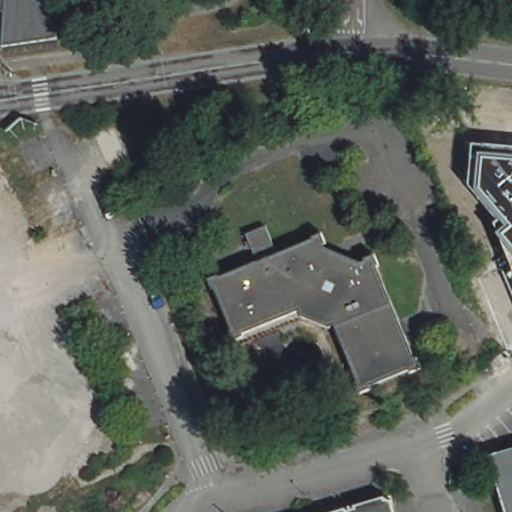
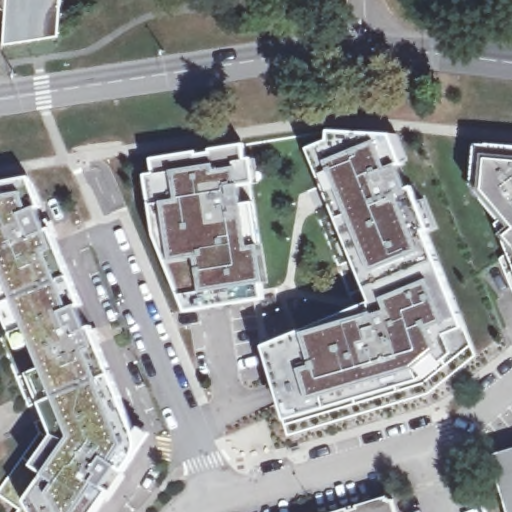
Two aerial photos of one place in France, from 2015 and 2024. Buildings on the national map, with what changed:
unchanged [(60,38),(5,46),(7,14),(0,13),(0,0),(62,0),(60,38)]
new [(264,347),(370,302),(307,149),(329,141),(330,131),(390,135),(401,163),(397,165),(407,190),(412,188),(427,229),(422,231),(463,327),(445,334),(452,354),(419,381),(285,419),(264,347)]
new [(156,235),(146,176),(154,174),(152,161),(196,153),(197,156),(212,154),(212,150),(243,145),(245,161),(251,160),(254,183),(239,185),(242,205),(253,203),(260,245),(265,281),(262,282),(263,299),(187,311),(156,235)]
new [(501,222),(472,189),(475,145),(512,147),(512,260),(509,252),(497,224),(501,222)]
demolished [(0,254),(0,160),(36,239),(0,254)]
new [(41,207),(37,209),(42,221),(47,219),(50,228),(81,305),(77,307),(86,327),(90,326),(134,433),(139,426),(150,433),(135,455),(123,471),(127,476),(108,504),(102,501),(94,512),(32,512),(26,500),(43,474),(32,465),(53,434),(29,374),(41,367),(31,342),(18,349),(0,307),(0,270),(1,269),(0,268),(0,181),(29,176),(41,207)]
demolished [(218,288),(226,285),(224,280),(261,264),(249,235),(269,227),(281,255),(317,241),(319,247),(326,244),(327,249),(365,263),(369,262),(371,269),(380,266),(417,359),(410,362),(412,365),(414,370),(372,387),(368,379),(361,382),(335,319),(330,321),(311,312),(309,308),(246,334),(243,328),(236,331),(218,288)]
new [(512,260),(512,289),(500,259),(509,252),(512,260)]
demolished [(57,311),(117,450),(26,488),(0,426),(0,336),(39,319),(57,311)]
new [(474,356),(428,394),(290,435),(285,419),(419,381),(452,354),(445,334),(463,327),(474,356)]
unchanged [(511,512),(494,455),(512,450),(512,512),(511,512)]
unchanged [(350,508),(361,505),(360,502),(387,494),(387,495),(390,495),(390,497),(393,497),(398,512),(326,512),(349,505),(350,508)]

